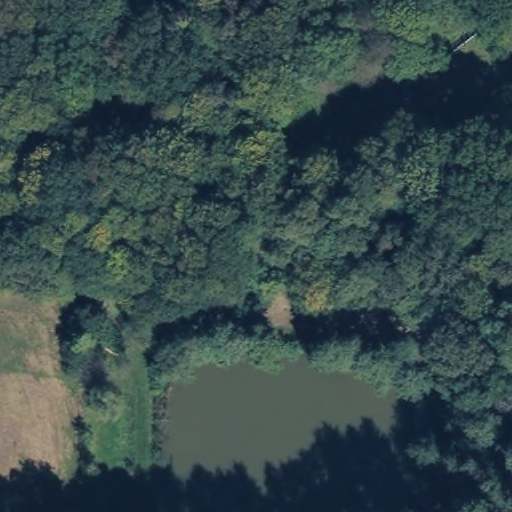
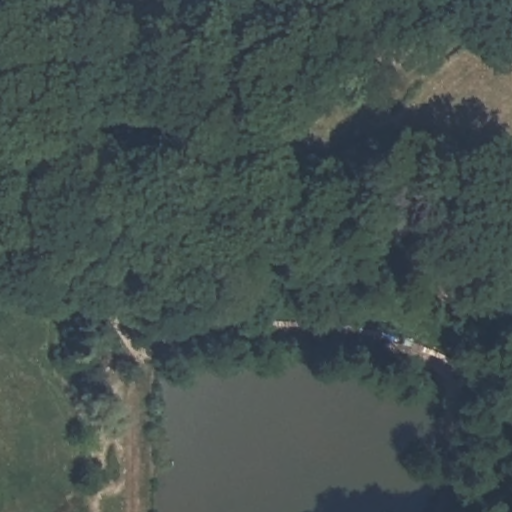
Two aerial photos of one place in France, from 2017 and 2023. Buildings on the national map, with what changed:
unchanged [(88,340),(106,347),(97,364),(80,355),(88,340)]

